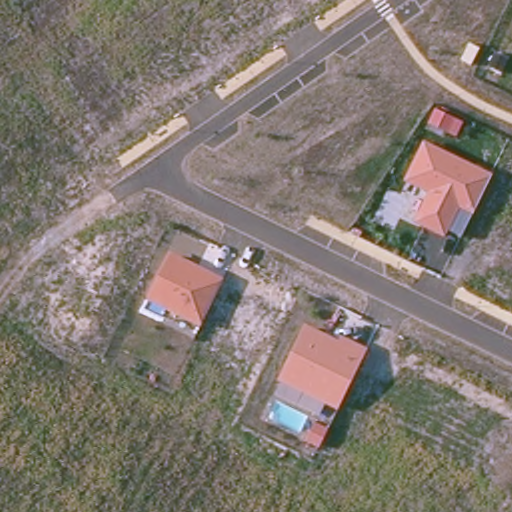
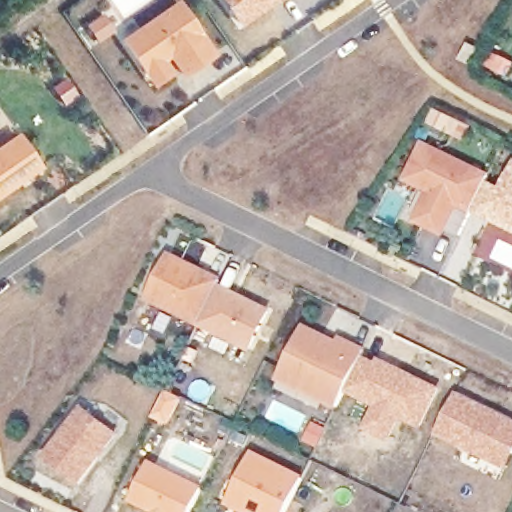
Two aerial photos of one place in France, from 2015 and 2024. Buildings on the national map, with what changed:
new [(224,0),(270,0),(267,2),(262,6),(239,22),(224,0)]
new [(154,82),(145,70),(123,38),(177,1),(213,52),(183,73),(170,53),(162,59),(171,71),(154,82)]
new [(466,137),(449,129),(431,120),(437,107),(455,117),(472,125),(466,137)]
new [(0,198),(0,148),(20,134),(42,169),(0,198)]
unchanged [(413,219),(427,190),(403,178),(422,138),(492,172),(461,234),(448,228),(445,235),(413,219)]
new [(487,181),(502,189),(512,170),(512,232),(472,212),(487,181)]
unchanged [(147,300),(169,252),(223,280),(200,327),(147,300)]
new [(273,309),(253,352),(200,327),(221,283),(273,309)]
unchanged [(277,381),(303,324),(339,341),(342,336),(367,347),(338,410),(277,381)]
new [(365,431),(377,407),(346,392),(363,356),(378,363),(381,359),(442,389),(422,428),(400,417),(391,442),(365,431)]
new [(440,433),(459,396),(512,421),(512,463),(510,467),(496,461),(440,433)]
new [(45,458),(85,407),(121,436),(82,486),(45,458)]
new [(254,452),(305,478),(289,512),(242,512),(228,506),(254,452)]
new [(152,462),(205,487),(193,512),(152,512),(132,502),(152,462)]

